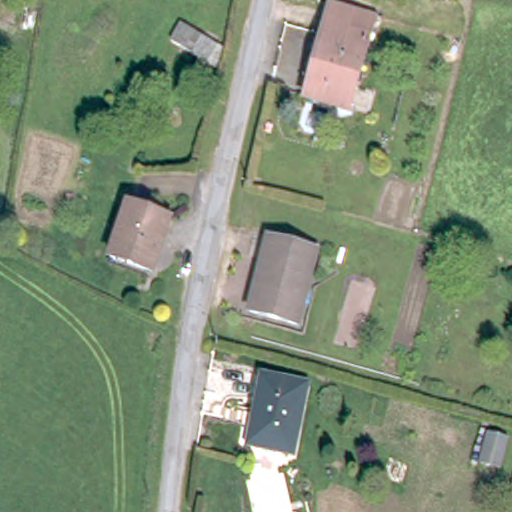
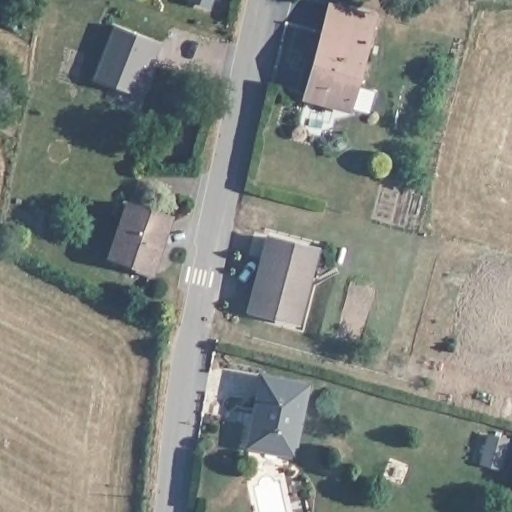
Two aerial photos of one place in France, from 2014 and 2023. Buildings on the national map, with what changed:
unchanged [(350,114),(306,103),(332,8),(375,20),(350,114)]
demolished [(198,55),(170,39),(180,21),(215,43),(205,62),(202,68),(195,66),(198,55)]
new [(116,27),(163,45),(157,61),(151,59),(143,80),(144,80),(138,96),(96,80),(116,27)]
unchanged [(151,272),(110,257),(128,203),(170,217),(151,272)]
unchanged [(298,324),(250,311),(267,238),(317,251),(298,324)]
unchanged [(297,445),(255,436),(268,368),(311,377),(297,445)]
unchanged [(497,465),(480,460),(488,432),(505,437),(497,465)]

